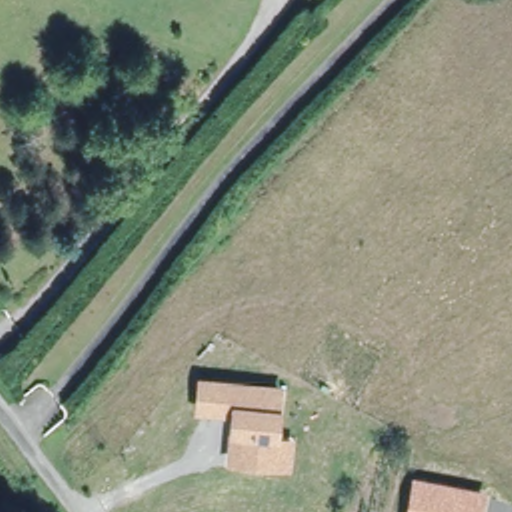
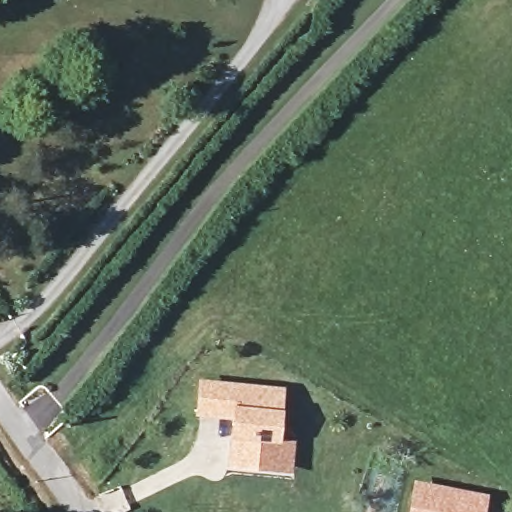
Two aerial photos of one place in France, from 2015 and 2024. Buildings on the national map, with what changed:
unchanged [(292,465),(291,473),(273,471),(234,466),(236,448),(236,443),(237,439),(240,419),(204,414),(207,386),(283,395),(276,449),(294,451),(292,465)]
unchanged [(488,496),(485,512),(408,512),(415,480),(488,496)]

